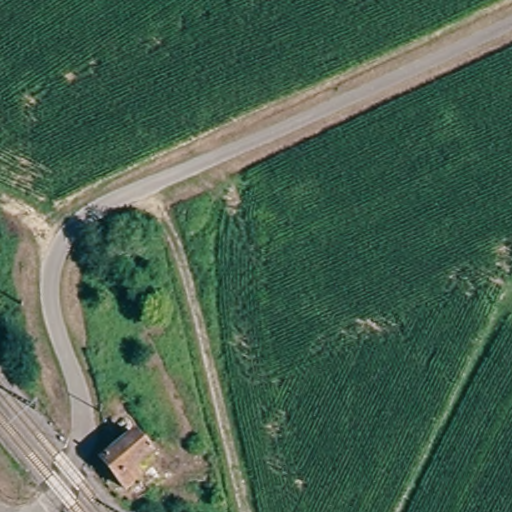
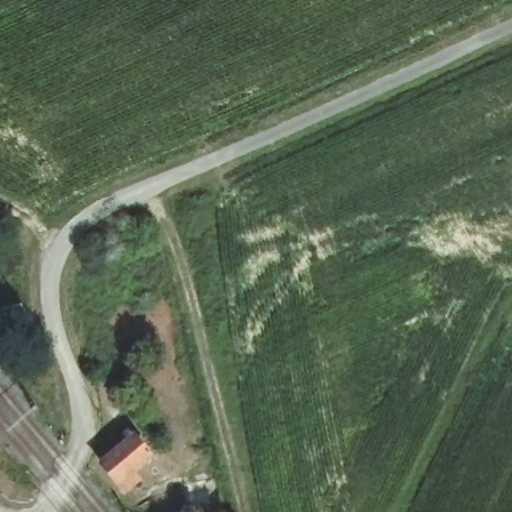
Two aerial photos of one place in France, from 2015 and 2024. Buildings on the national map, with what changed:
unchanged [(109,465),(119,453),(116,449),(129,438),(149,464),(124,484),(109,465)]

